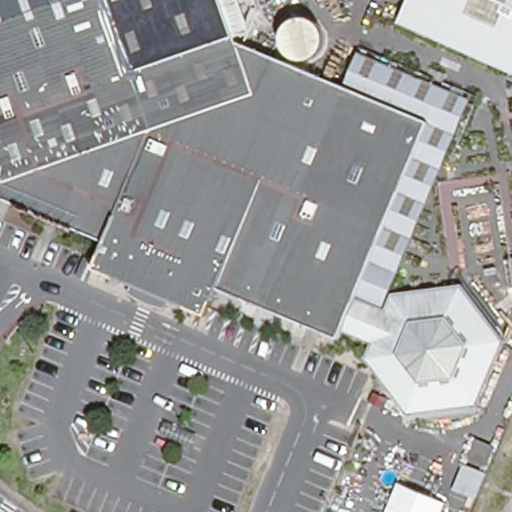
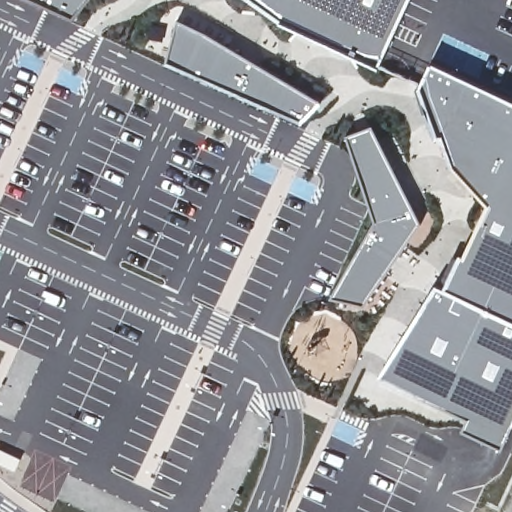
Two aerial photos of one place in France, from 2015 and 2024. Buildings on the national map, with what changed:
demolished [(100,273),(113,242),(0,193),(0,0),(225,0),(238,41),(283,61),(258,70),(261,76),(284,145),(316,76),(349,90),(394,209),(397,211),(366,282),(340,283),(266,310),(218,289),(206,317),(152,293),(146,291),(100,273)]
new [(71,17),(35,0),(84,0),(71,17)]
new [(380,66),(281,22),(254,0),(411,0),(380,66)]
demolished [(512,67),(405,19),(413,0),(512,0),(512,67)]
new [(300,123),(165,64),(177,20),(205,34),(320,103),(300,123)]
demolished [(261,76),(258,70),(283,61),(316,76),(284,145),(261,76)]
new [(462,431),(469,417),(379,377),(436,283),(446,288),(460,256),(464,257),(487,204),(454,169),(443,136),(437,137),(418,91),(431,62),(512,100),(512,426),(501,448),(462,431)]
demolished [(351,91),(433,127),(397,211),(394,209),(349,90),(351,91)]
new [(363,303),(330,298),(374,222),(345,137),(373,126),(420,223),(363,303)]
demolished [(385,311),(392,296),(428,292),(470,289),(491,321),(509,346),(481,409),(406,415),(367,362),(375,342),(345,331),(340,342),(266,310),(340,283),(366,282),(358,299),(385,311)]

